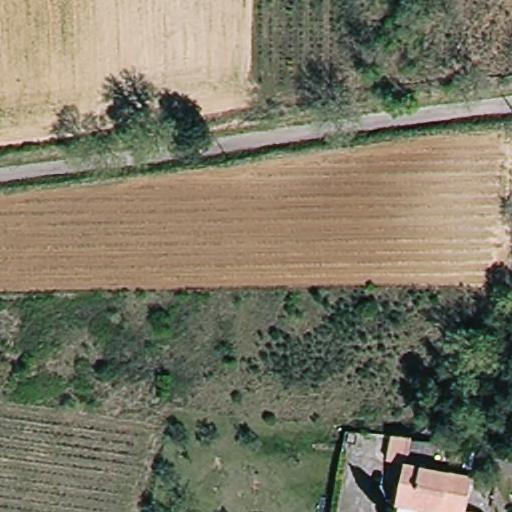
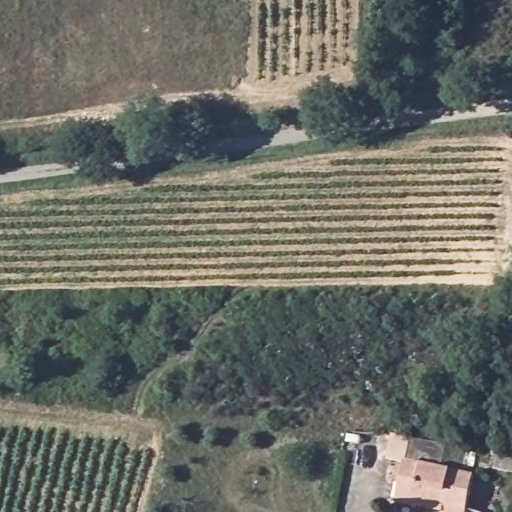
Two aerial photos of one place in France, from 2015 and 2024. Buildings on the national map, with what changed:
unchanged [(405,458),(477,471),(470,512),(441,512),(397,504),(405,458)]

